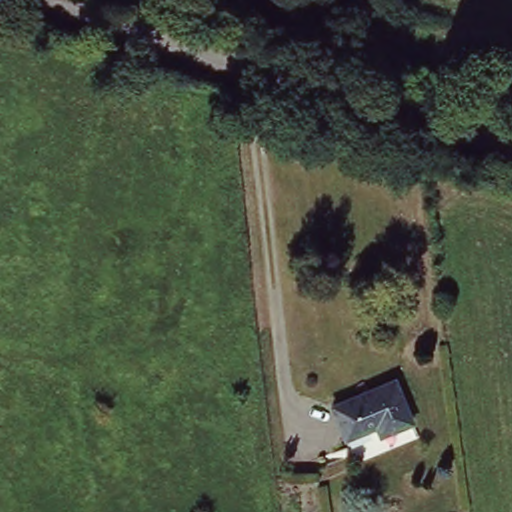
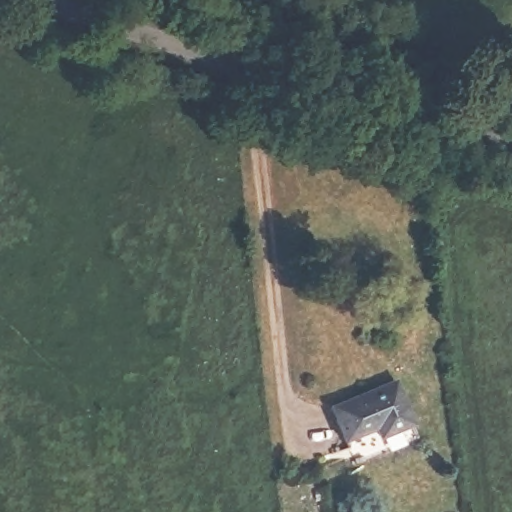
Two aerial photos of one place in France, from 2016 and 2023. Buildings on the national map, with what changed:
unchanged [(397,375),(413,420),(380,433),(377,426),(367,430),(371,441),(353,448),(334,400),(397,375)]

